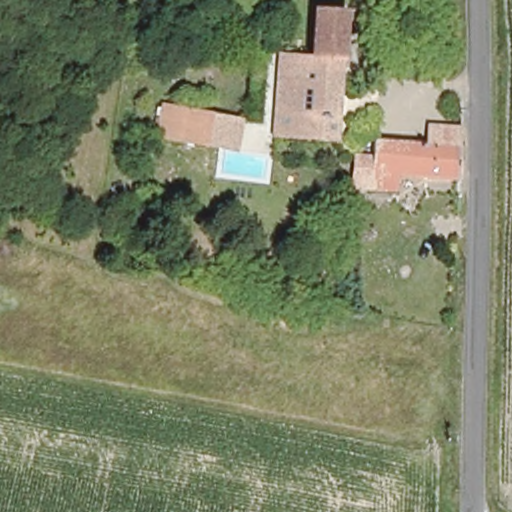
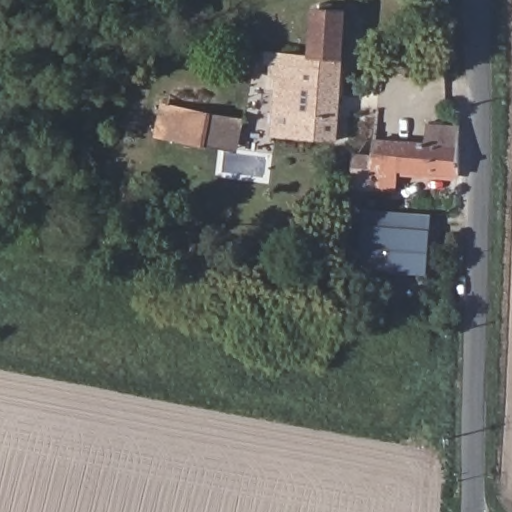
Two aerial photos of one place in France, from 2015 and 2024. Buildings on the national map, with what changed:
unchanged [(279,53),(309,55),(312,10),(342,12),(334,141),(273,137),(279,53)]
unchanged [(154,139),(161,101),(246,117),(239,152),(154,139)]
unchanged [(356,153),(372,154),(373,139),(426,143),(428,126),(457,129),(458,177),(395,173),(392,191),(369,189),(353,188),(356,153)]
new [(428,276),(360,270),(362,209),(431,214),(428,276)]

